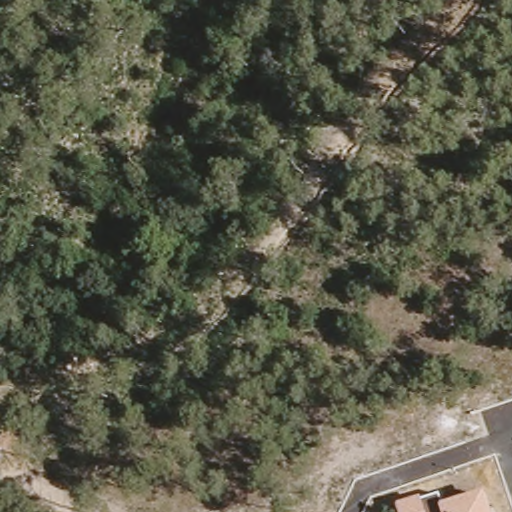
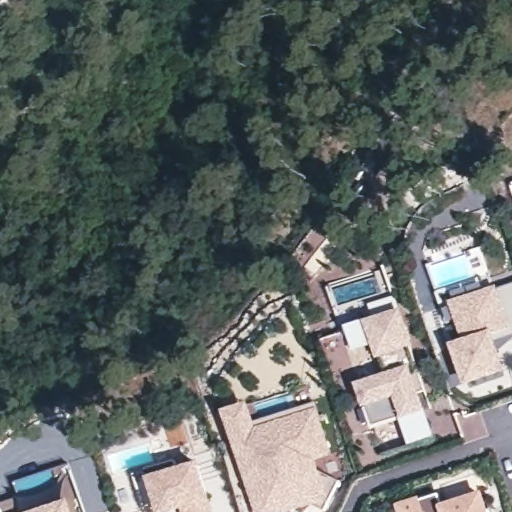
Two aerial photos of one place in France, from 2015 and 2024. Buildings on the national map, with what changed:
new [(498,290),(512,284),(512,335),(496,341),(507,373),(466,387),(452,344),(463,340),(451,304),(497,286),(498,290)]
new [(400,310),(425,393),(419,394),(436,439),(409,446),(400,418),(370,427),(363,407),(356,385),(382,376),(373,345),(354,352),(346,327),(365,321),(373,318),(369,305),(393,297),(400,310)]
new [(249,403),(256,425),(316,405),(333,457),(317,463),(320,472),(337,482),(324,509),(312,505),(290,512),(256,512),(224,412),(249,403)]
new [(178,471),(197,465),(211,512),(184,512),(183,508),(169,512),(160,512),(158,507),(144,512),(133,474),(147,470),(175,461),(178,471)]
unchanged [(396,506),(421,496),(422,501),(440,494),(444,505),(484,491),(490,512),(398,512),(396,506)]
new [(68,500),(72,512),(32,512),(68,500)]

